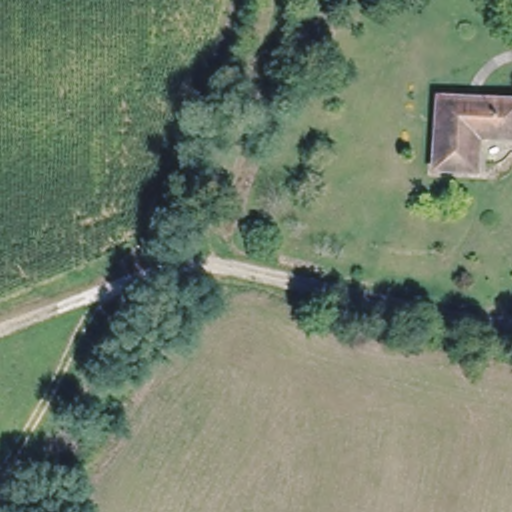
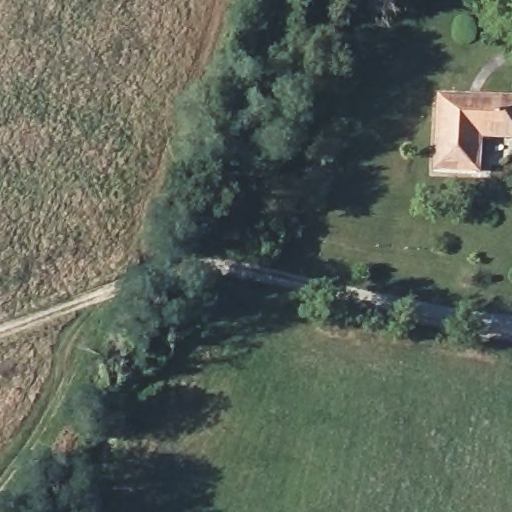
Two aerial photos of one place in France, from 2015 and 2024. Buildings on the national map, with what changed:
unchanged [(441,95),(512,97),(512,130),(479,130),(478,167),(440,165),(441,95)]

